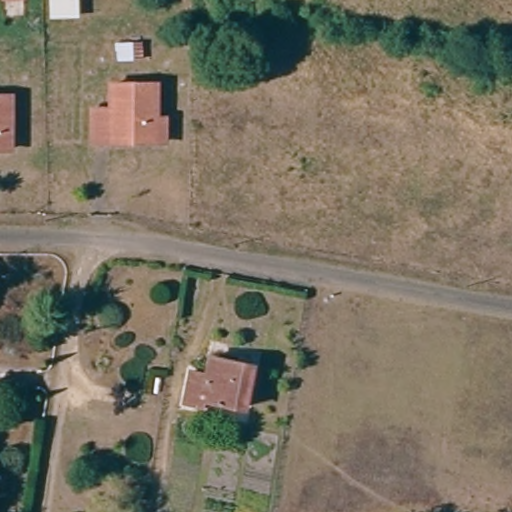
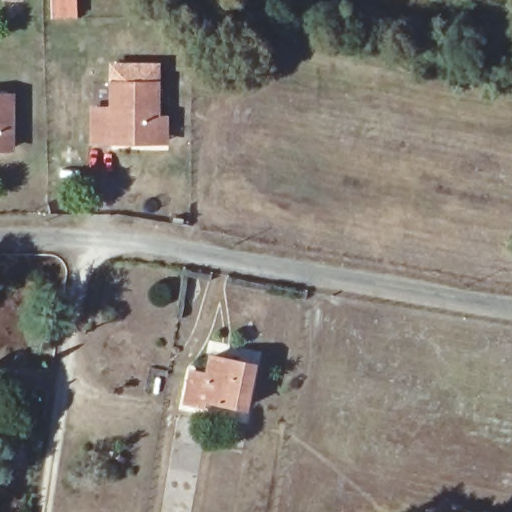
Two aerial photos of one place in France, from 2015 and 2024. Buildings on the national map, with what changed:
unchanged [(159,144),(106,145),(86,145),(86,113),(105,113),(105,100),(105,87),(149,87),(149,101),(149,121),(159,121),(159,144)]
unchanged [(2,100),(4,154),(0,154),(0,100),(2,100)]
unchanged [(209,364),(226,367),(228,361),(245,364),(236,409),(201,402),(199,413),(182,410),(189,373),(206,375),(209,364)]

